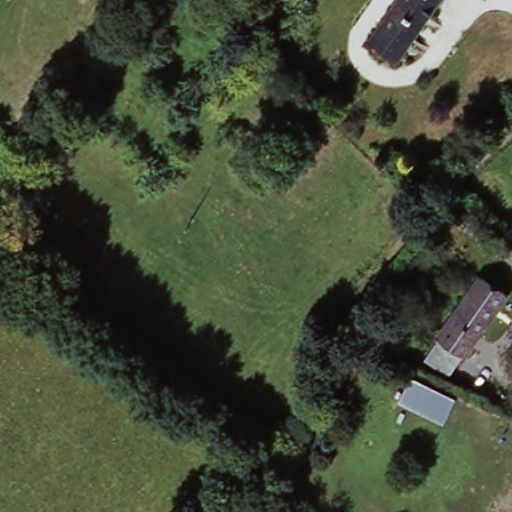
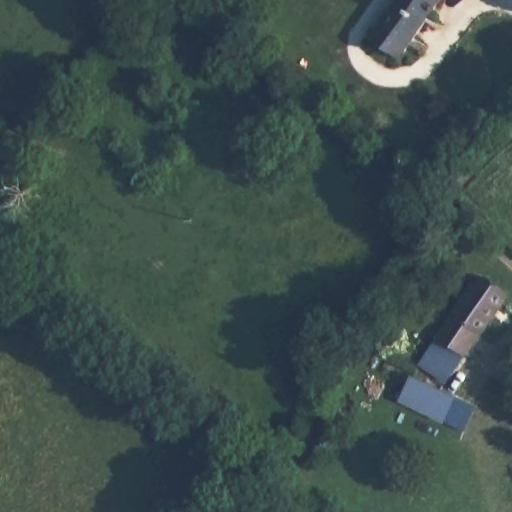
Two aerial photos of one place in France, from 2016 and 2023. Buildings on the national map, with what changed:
unchanged [(400,57),(371,37),(398,0),(442,0),(400,57)]
unchanged [(432,357),(447,335),(443,332),(485,275),(510,292),(470,351),(455,370),(432,357)]
unchanged [(399,403),(412,374),(461,396),(448,426),(399,403)]

